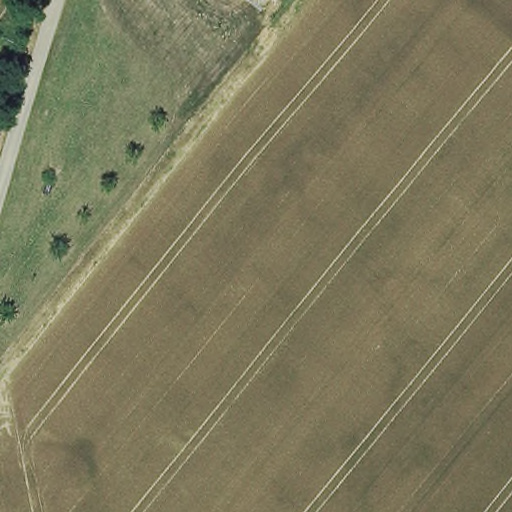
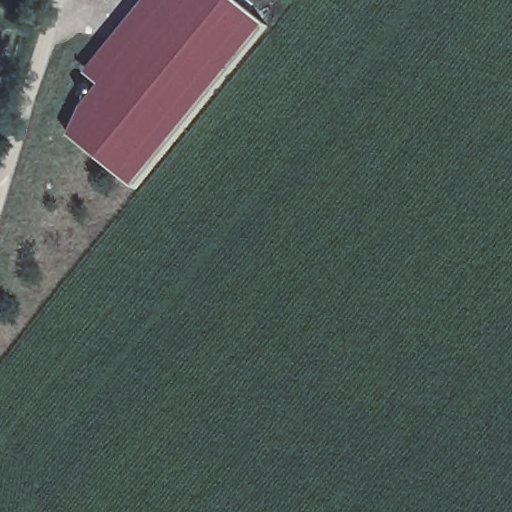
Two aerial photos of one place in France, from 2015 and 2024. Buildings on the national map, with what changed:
new [(137,187),(72,135),(78,120),(102,86),(87,76),(147,0),(235,0),(268,27),(137,187)]

